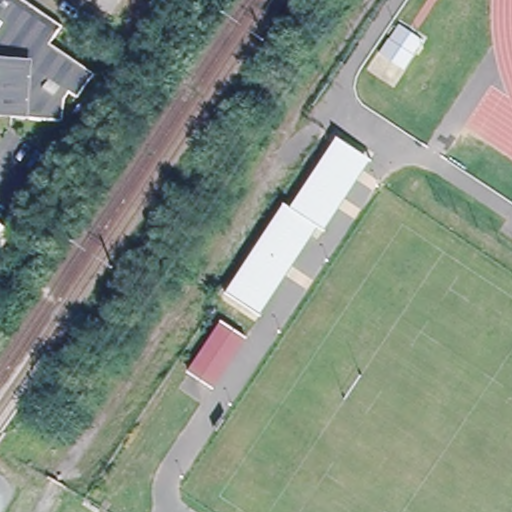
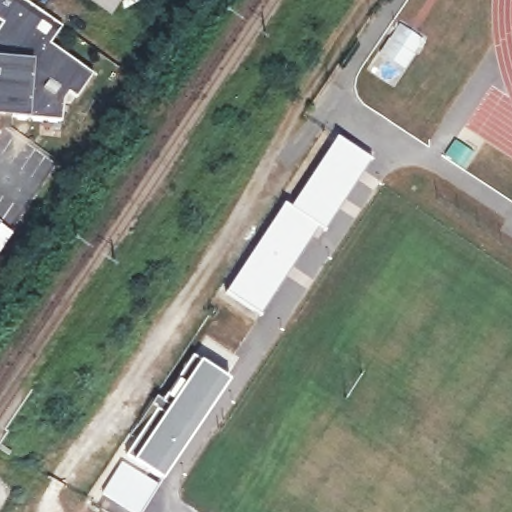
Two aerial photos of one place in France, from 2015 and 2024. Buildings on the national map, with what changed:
unchanged [(74,93),(65,87),(57,100),(56,115),(5,113),(4,107),(0,108),(0,0),(23,0),(57,24),(47,39),(90,69),(74,93)]
unchanged [(110,9),(97,0),(116,0),(110,9)]
unchanged [(251,313),(224,295),(225,294),(227,295),(285,208),(282,207),(283,205),(291,211),(337,142),(335,140),(336,139),(363,157),(371,163),(323,234),(316,229),(310,225),(251,313)]
new [(147,416),(144,413),(156,395),(161,399),(192,352),(232,378),(164,481),(162,480),(125,454),(125,453),(147,416)]
new [(162,480),(143,512),(131,512),(100,493),(125,454),(162,480)]

